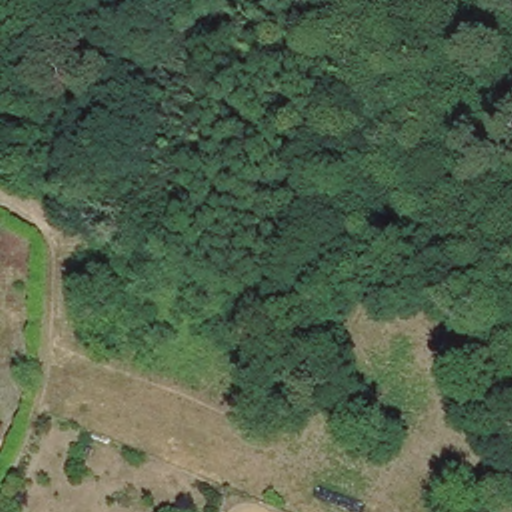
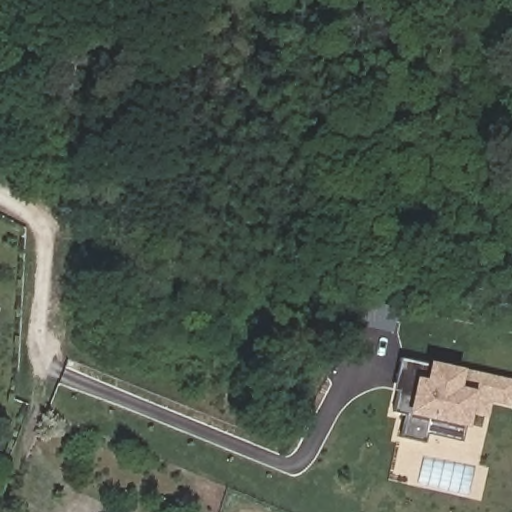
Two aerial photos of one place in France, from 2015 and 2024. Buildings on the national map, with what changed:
unchanged [(1,365),(9,348),(16,351),(9,368),(1,365)]
new [(511,405),(491,401),(488,416),(471,413),(467,428),(463,427),(460,440),(427,434),(426,442),(401,437),(407,413),(393,411),(399,391),(394,390),(401,359),(428,366),(428,363),(465,370),(512,380),(512,401),(511,405)]

